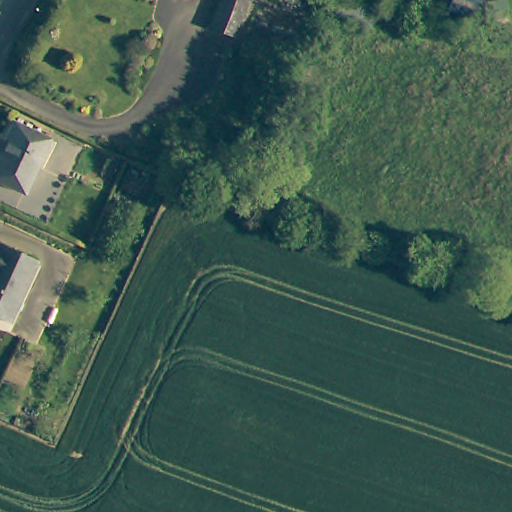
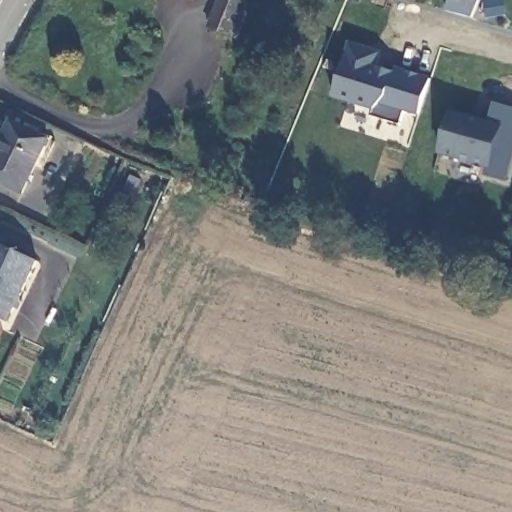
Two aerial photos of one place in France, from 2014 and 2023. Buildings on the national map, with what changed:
unchanged [(232,34),(207,25),(217,0),(245,0),(232,34)]
unchanged [(473,18),(446,10),(451,0),(480,0),(473,18)]
new [(381,51),(376,65),(392,70),(394,66),(431,78),(419,115),(404,111),(400,124),(371,115),(374,110),(331,97),(349,40),(381,51)]
new [(484,176),(486,168),(439,154),(451,109),(490,120),(494,102),(512,108),(512,165),(507,182),(484,176)]
unchanged [(47,134),(24,190),(0,180),(0,138),(8,119),(47,134)]
unchanged [(39,257),(13,318),(0,313),(0,240),(39,257)]

